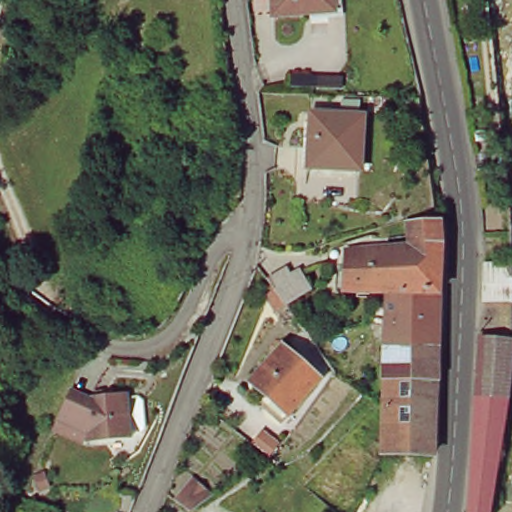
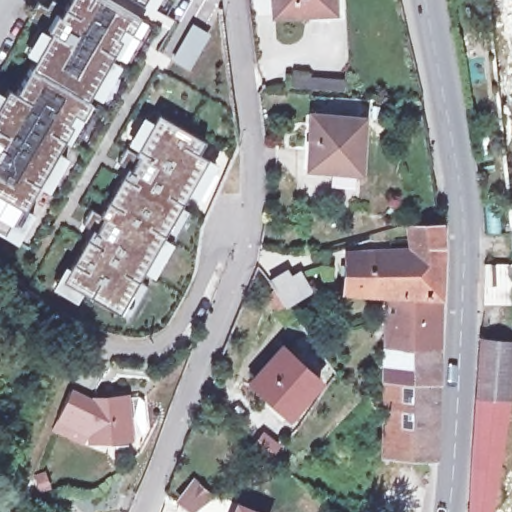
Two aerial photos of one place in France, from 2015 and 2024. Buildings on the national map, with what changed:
new [(1,232),(0,231),(0,97),(6,86),(15,91),(67,0),(166,0),(26,245),(13,240),(1,232)]
unchanged [(337,15),(275,19),(273,0),(336,0),(337,15)]
new [(208,37),(190,70),(175,62),(193,29),(208,37)]
new [(126,317),(80,290),(75,302),(44,286),(60,260),(68,266),(88,231),(81,228),(146,107),(151,109),(155,101),(210,131),(207,135),(212,137),(201,156),(214,162),(126,317)]
unchanged [(360,170),(310,168),(313,114),(363,116),(360,170)]
unchanged [(344,292),(345,252),(410,247),(408,223),(438,220),(436,295),(385,293),(344,292)]
unchanged [(480,300),(482,263),(512,264),(512,301),(480,300)]
unchanged [(287,298),(285,300),(272,283),(297,268),(298,269),(308,286),(287,298)]
unchanged [(435,348),(385,347),(385,293),(436,295),(435,348)]
unchanged [(478,341),(511,343),(505,399),(475,397),(478,341)]
unchanged [(431,456),(380,454),(380,415),(380,413),(380,347),(385,347),(435,348),(431,456)]
unchanged [(315,379),(285,412),(246,383),(276,348),(315,379)]
unchanged [(53,426),(57,419),(58,416),(65,401),(70,389),(87,397),(126,393),(130,434),(90,438),(90,431),(84,429),(80,438),(53,426)]
unchanged [(468,512),(475,397),(505,399),(489,512),(468,512)]
unchanged [(194,506),(181,496),(192,483),(208,496),(194,506)]
new [(260,512),(230,512),(233,502),(260,512)]

